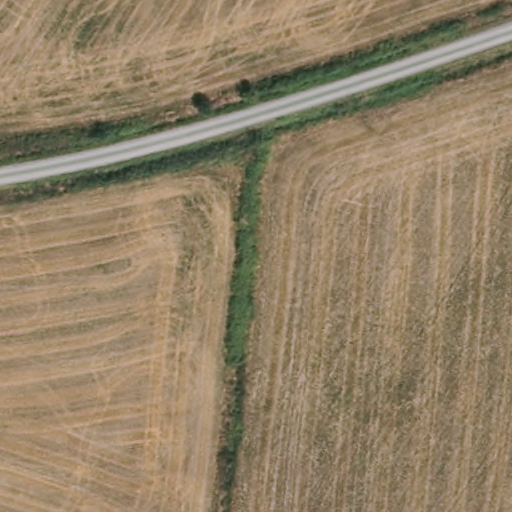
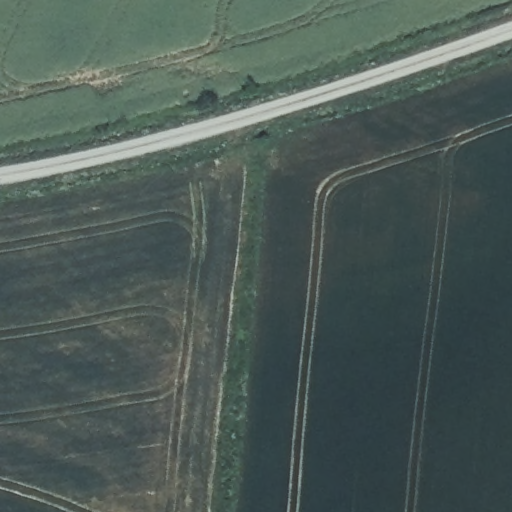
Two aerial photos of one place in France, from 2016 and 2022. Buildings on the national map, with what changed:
[]

